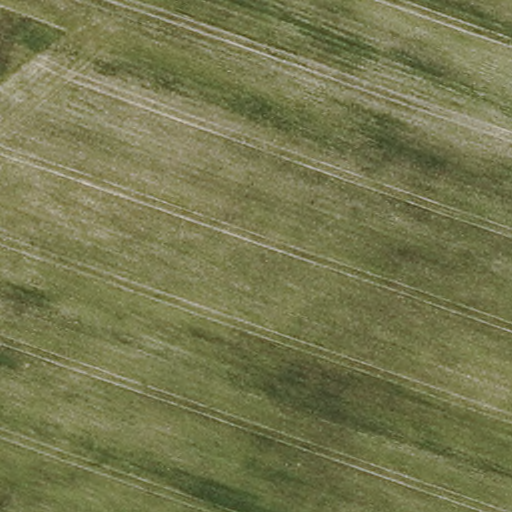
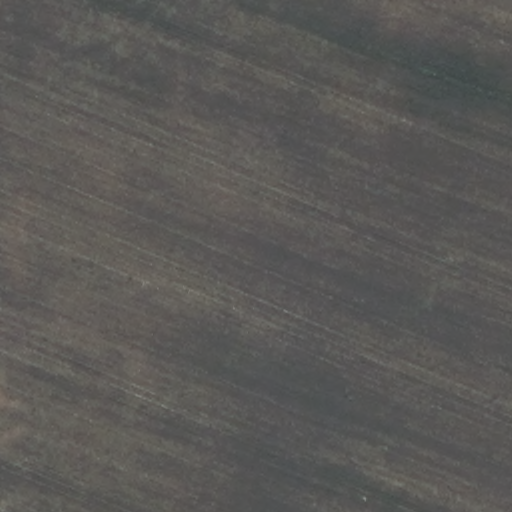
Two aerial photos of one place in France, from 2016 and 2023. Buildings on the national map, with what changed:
[]

